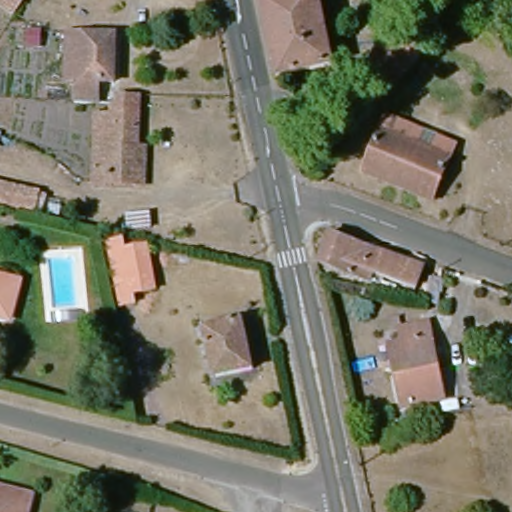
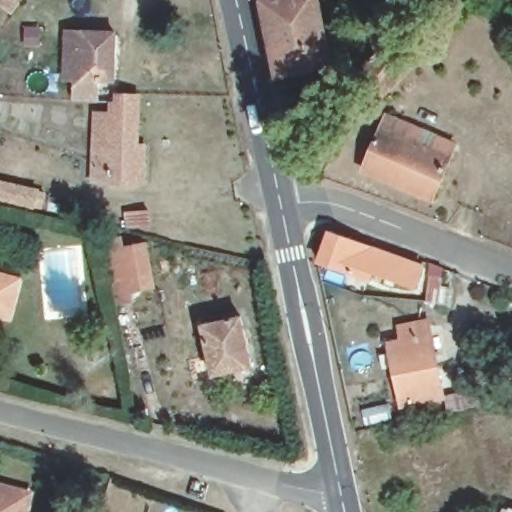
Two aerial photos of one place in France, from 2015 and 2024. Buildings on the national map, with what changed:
unchanged [(0,0),(15,0),(8,9),(0,2),(0,0)]
unchanged [(276,75),(264,0),(319,0),(330,66),(276,75)]
unchanged [(77,94),(78,72),(69,72),(71,27),(114,28),(114,75),(117,75),(116,94),(111,95),(77,94)]
unchanged [(358,76),(397,32),(424,57),(389,95),(383,100),(358,76)]
unchanged [(138,176),(92,177),(92,146),(111,146),(111,95),(116,94),(140,94),(138,176)]
unchanged [(384,119),(454,145),(449,160),(378,132),(384,119)]
unchanged [(449,160),(433,199),(363,172),(378,132),(449,160)]
unchanged [(0,178),(37,189),(33,207),(0,198),(0,178)]
unchanged [(419,261),(411,282),(369,266),(366,275),(320,257),(330,229),(419,261)]
unchanged [(110,305),(102,241),(111,240),(112,249),(138,245),(144,291),(124,293),(126,303),(110,305)]
unchanged [(436,283),(423,276),(428,265),(442,270),(436,283)]
unchanged [(0,272),(24,280),(12,315),(0,312),(0,272)]
unchanged [(209,373),(202,323),(242,317),(249,367),(209,373)]
unchanged [(403,410),(389,351),(401,348),(398,335),(427,329),(445,399),(403,410)]
unchanged [(25,512),(0,512),(0,485),(30,492),(25,512)]

